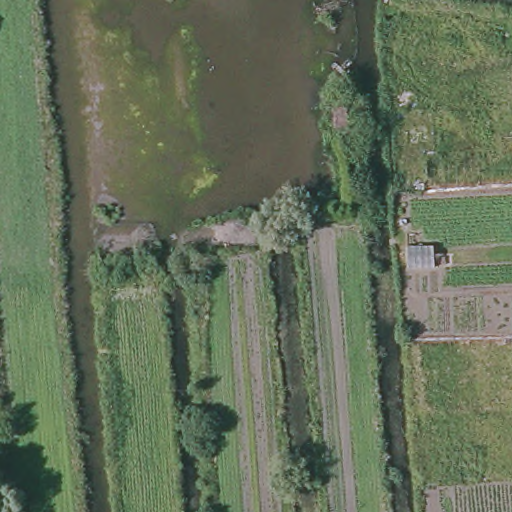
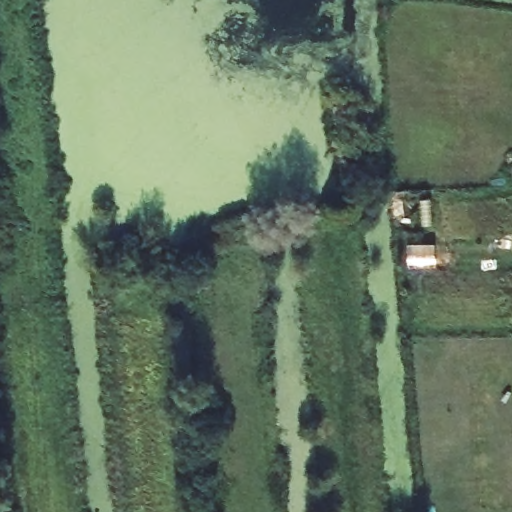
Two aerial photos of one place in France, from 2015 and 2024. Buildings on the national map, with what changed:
unchanged [(332,111),(350,109),(351,129),(337,133),(332,111)]

